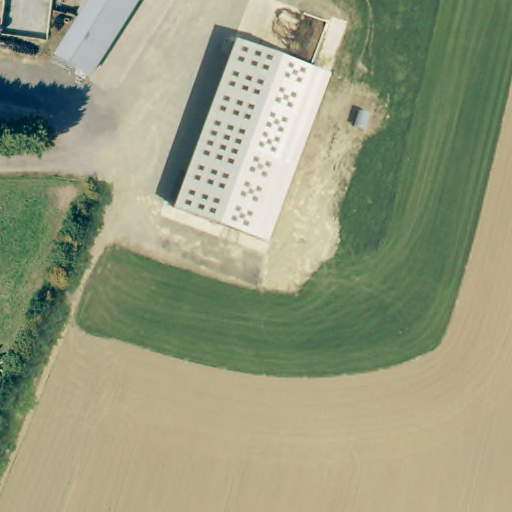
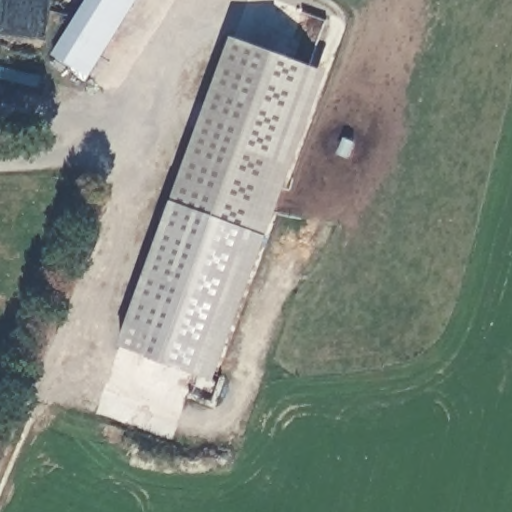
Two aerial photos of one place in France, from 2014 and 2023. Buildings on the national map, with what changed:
unchanged [(87,0),(136,0),(86,76),(52,53),(87,0)]
unchanged [(326,74),(265,241),(172,206),(231,39),(326,74)]
new [(214,383),(118,347),(172,206),(265,241),(214,383)]

